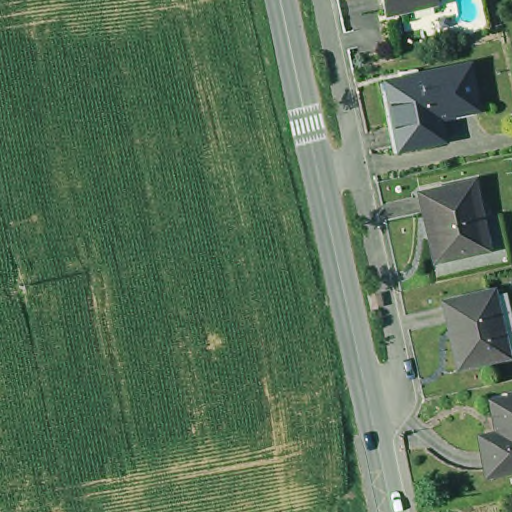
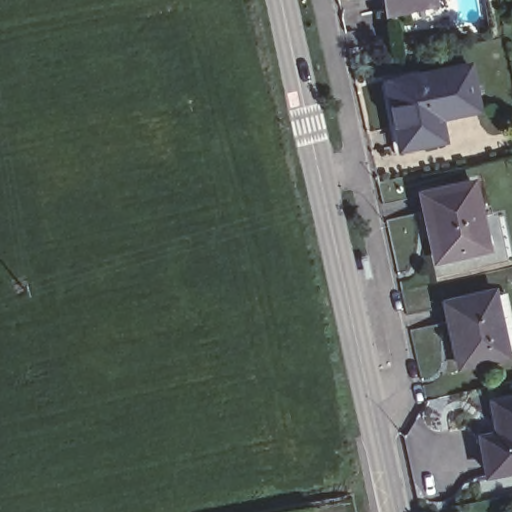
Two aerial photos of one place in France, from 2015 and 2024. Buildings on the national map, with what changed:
unchanged [(395,9),(393,0),(439,0),(395,9)]
unchanged [(406,143),(395,77),(477,62),(486,106),(447,114),(450,135),(406,143)]
unchanged [(425,194),(476,183),(490,248),(438,260),(425,194)]
unchanged [(512,331),(512,348),(467,357),(453,292),(501,282),(512,331)]
unchanged [(492,470),(487,446),(485,433),(502,430),(497,398),(512,396),(512,467),(492,470)]

